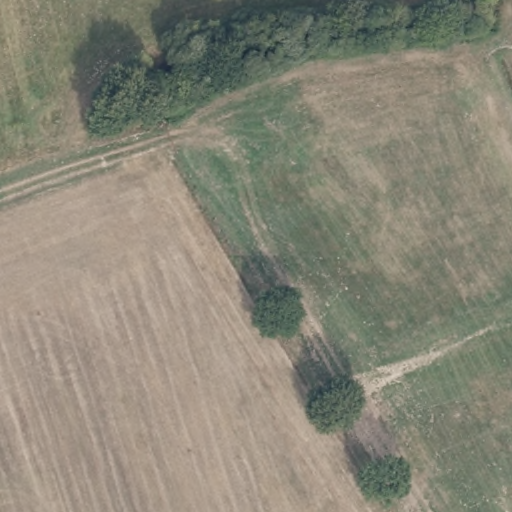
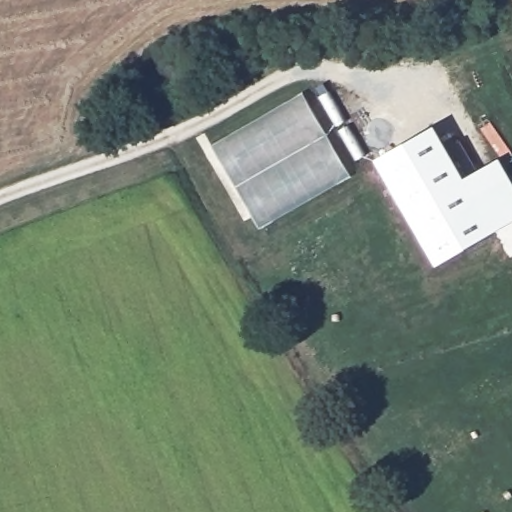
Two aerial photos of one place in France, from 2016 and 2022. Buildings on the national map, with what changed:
new [(303,93),(351,177),(260,229),(212,146),(303,93)]
new [(512,183),(512,221),(435,266),(374,159),(434,125),(463,177),(498,157),(512,183)]

